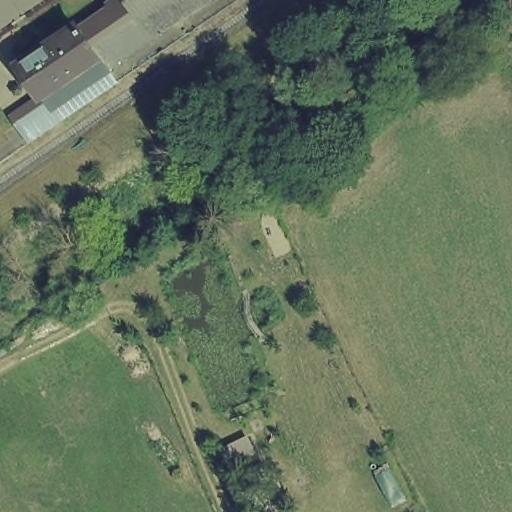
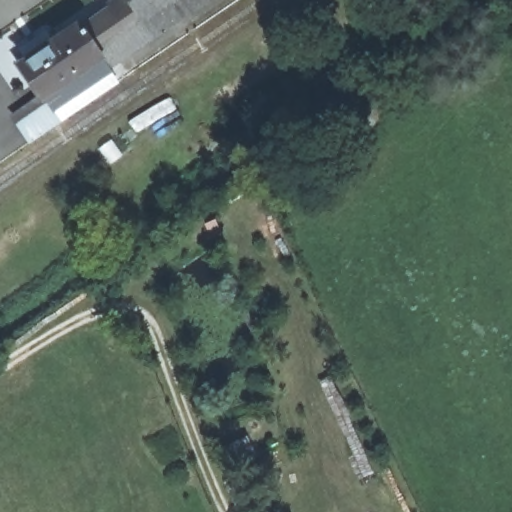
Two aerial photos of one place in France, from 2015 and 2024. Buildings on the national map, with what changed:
unchanged [(101,0),(208,0),(105,70),(73,18),(102,5),(101,0)]
unchanged [(112,81),(56,119),(43,101),(13,59),(73,18),(105,70),(112,81)]
unchanged [(62,126),(33,146),(17,121),(43,101),(56,119),(62,126)]
unchanged [(251,456),(240,461),(245,476),(224,483),(211,452),(243,434),(251,456)]
unchanged [(247,512),(221,512),(217,504),(240,492),(247,512)]

